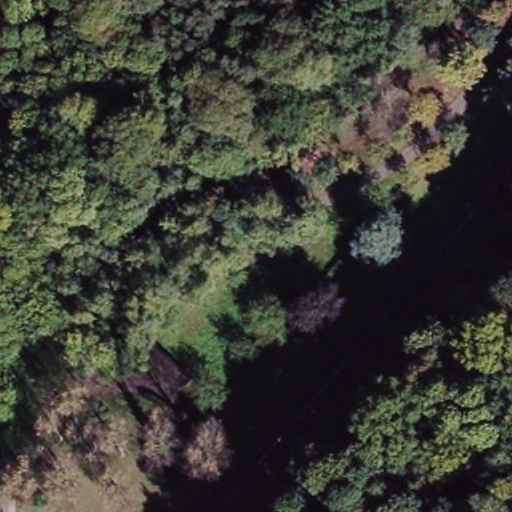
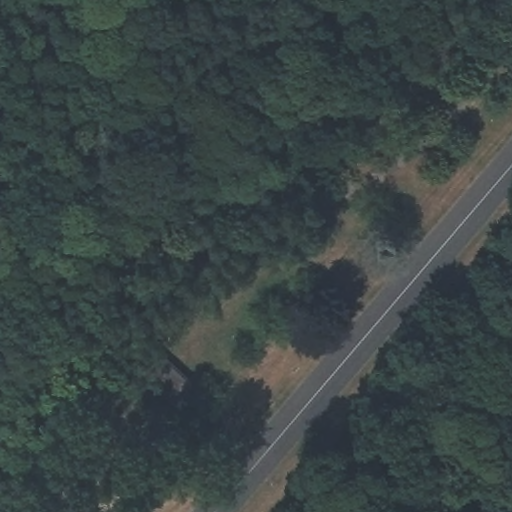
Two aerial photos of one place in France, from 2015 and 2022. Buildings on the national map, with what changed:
unchanged [(183,389),(172,401),(135,365),(145,354),(183,389)]

